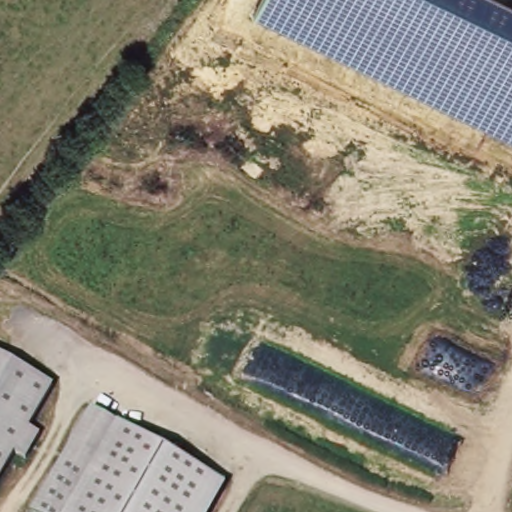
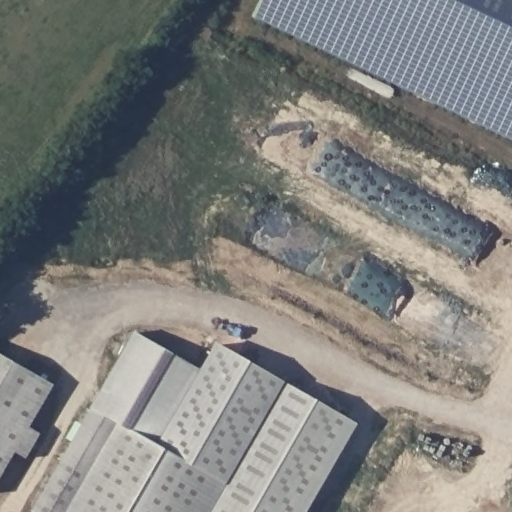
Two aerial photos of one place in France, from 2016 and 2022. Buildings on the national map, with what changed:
unchanged [(512,1),(512,141),(253,19),(262,0),(511,0),(512,1)]
new [(200,371),(217,344),(359,425),(309,512),(209,512),(224,485),(90,410),(135,333),(200,371)]
unchanged [(0,484),(0,357),(54,388),(0,484)]
unchanged [(224,485),(210,512),(33,512),(90,410),(224,485)]

